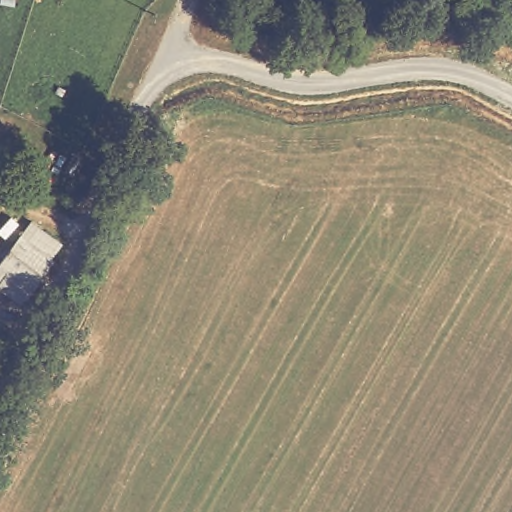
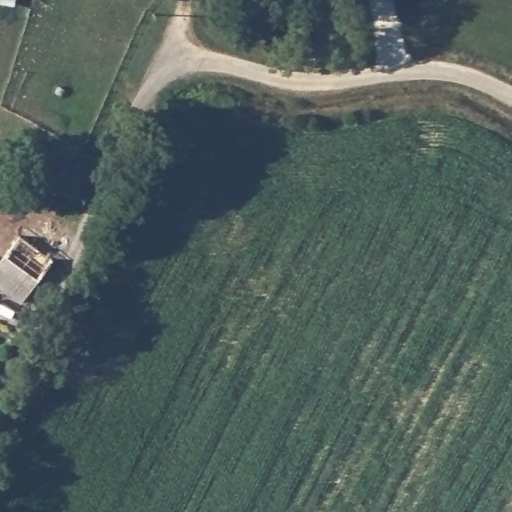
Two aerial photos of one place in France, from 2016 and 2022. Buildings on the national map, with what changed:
unchanged [(0,262),(14,243),(51,267),(32,297),(20,313),(0,299),(0,262)]

